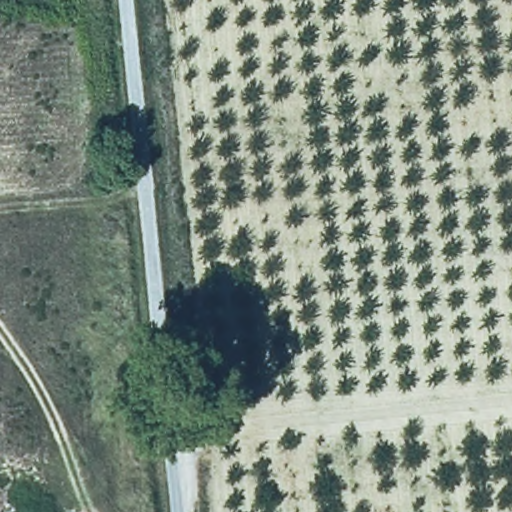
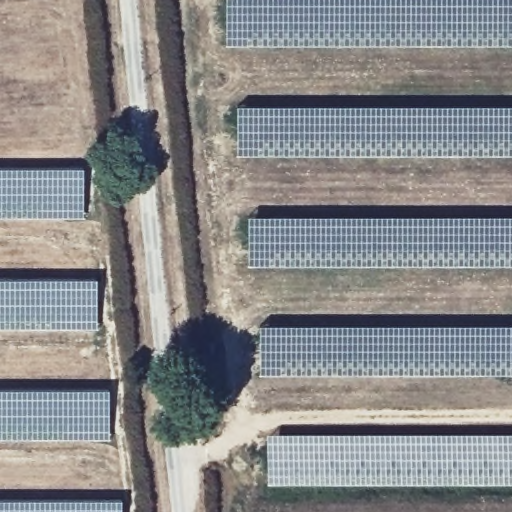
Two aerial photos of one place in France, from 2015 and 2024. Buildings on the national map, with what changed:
new [(226,46),(226,0),(512,0),(512,45),(226,46)]
new [(237,155),(237,105),(512,106),(512,155),(237,155)]
new [(0,217),(0,168),(84,168),(84,217),(0,217)]
new [(247,266),(248,215),(512,216),(512,265),(247,266)]
new [(0,328),(0,279),(97,278),(97,328),(0,328)]
new [(259,374),(260,325),(512,325),(512,374),(259,374)]
new [(0,438),(0,389),(110,389),(110,438),(0,438)]
new [(270,485),(270,435),(512,435),(512,484),(270,485)]
new [(0,512),(0,499),(122,499),(122,512),(0,512)]

